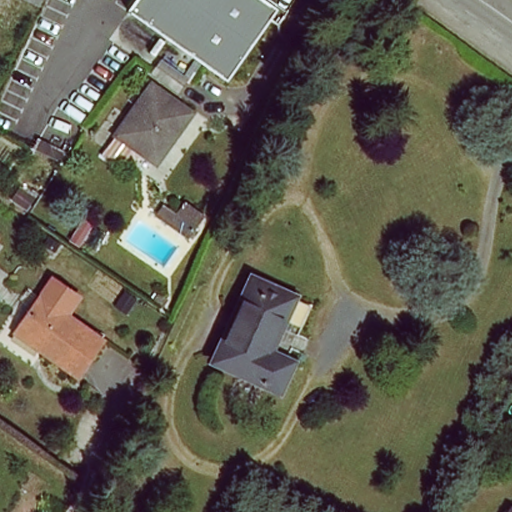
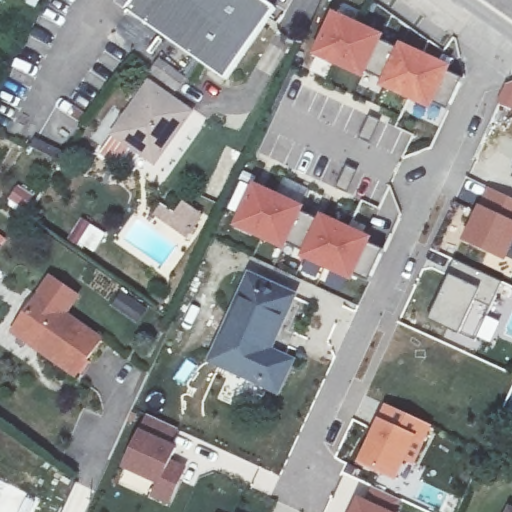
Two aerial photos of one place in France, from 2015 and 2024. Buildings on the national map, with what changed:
unchanged [(33,7),(19,0),(37,0),(33,7)]
unchanged [(225,81),(203,64),(203,63),(137,13),(146,0),(243,0),(270,21),(267,25),(225,81)]
new [(447,114),(430,106),(429,109),(383,87),(384,85),(363,75),(361,78),(315,57),(333,17),(379,39),(378,42),(399,52),(400,49),(447,70),(445,73),(462,81),(447,114)]
unchanged [(174,102),(146,85),(154,75),(160,67),(186,87),(174,102)]
new [(512,79),(512,110),(495,103),(504,81),(512,79)]
unchanged [(105,136),(141,91),(179,120),(143,165),(105,136)]
new [(368,119),(379,124),(369,146),(358,142),(368,119)]
new [(345,168),(357,173),(346,197),(335,191),(345,168)]
new [(284,247),(282,251),(236,230),(254,189),(300,211),(299,214),(320,224),(321,221),(367,242),(366,245),(383,252),(368,286),(351,277),(350,281),(303,260),(305,257),(284,247)]
new [(512,201),(512,247),(505,261),(467,242),(491,191),(512,201)]
unchanged [(162,206),(175,217),(184,204),(206,220),(189,244),(153,219),(162,206)]
new [(459,334),(432,321),(451,277),(457,263),(502,283),(476,339),(459,334)]
unchanged [(35,291),(49,272),(82,293),(68,313),(35,291)]
unchanged [(251,273),(295,295),(269,349),(293,362),(277,393),(211,360),(251,273)]
unchanged [(99,336),(75,373),(13,333),(38,296),(99,336)]
new [(406,463),(398,481),(359,463),(379,418),(384,405),(434,426),(416,466),(406,463)]
new [(154,420),(183,433),(175,451),(182,453),(175,467),(190,473),(174,508),(159,501),(164,488),(130,472),(154,420)]
new [(363,503),(370,488),(396,501),(391,512),(350,512),(356,500),(363,503)]
unchanged [(512,512),(508,512),(509,510),(512,511),(512,512)]

